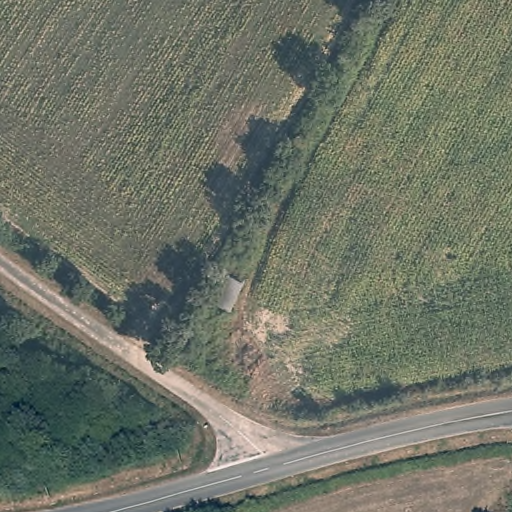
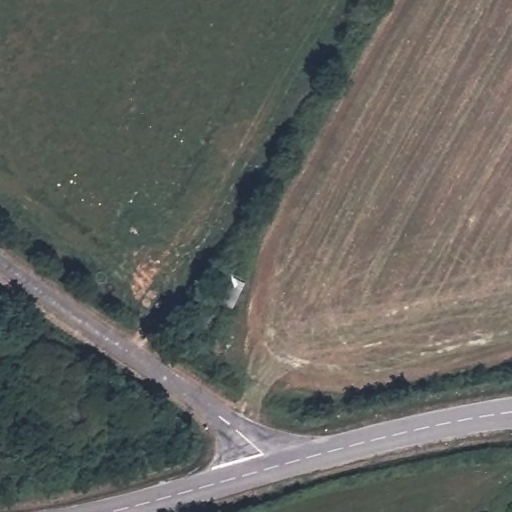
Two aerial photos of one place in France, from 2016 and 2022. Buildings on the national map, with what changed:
unchanged [(226,271),(250,281),(235,311),(213,300),(226,271)]

